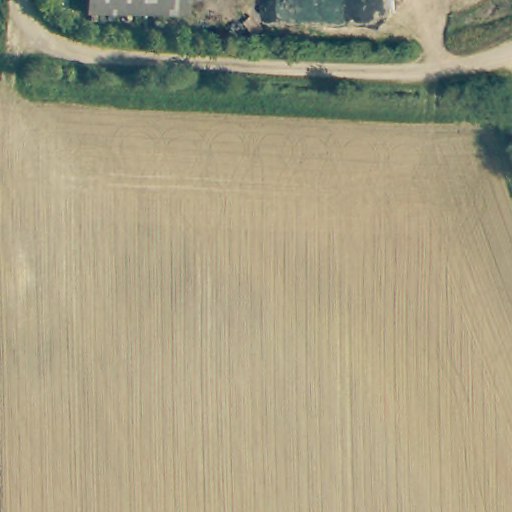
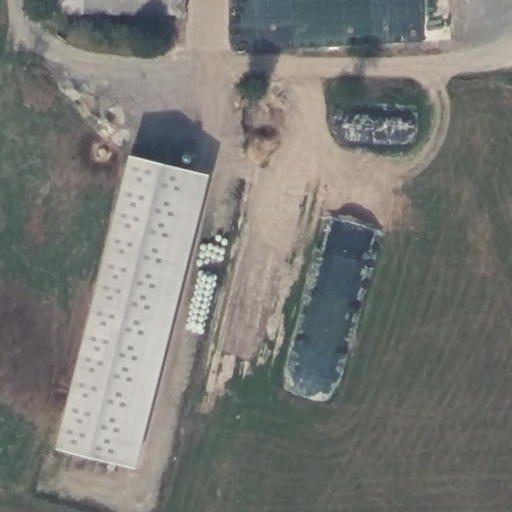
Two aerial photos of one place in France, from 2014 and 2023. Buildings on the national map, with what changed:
new [(53,15),(54,0),(82,0),(82,15),(53,15)]
unchanged [(82,15),(82,0),(186,0),(186,17),(82,15)]
new [(135,469),(55,448),(128,155),(209,176),(135,469)]

